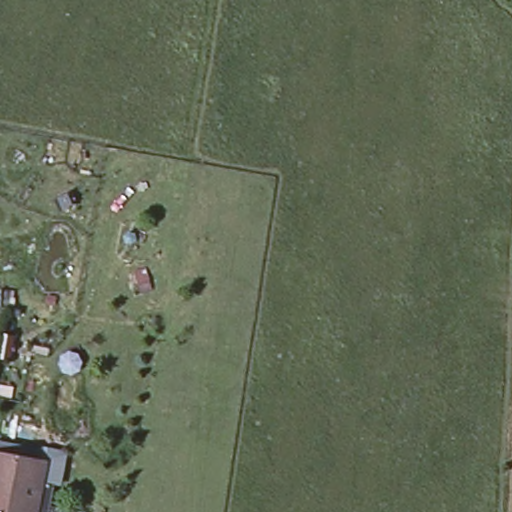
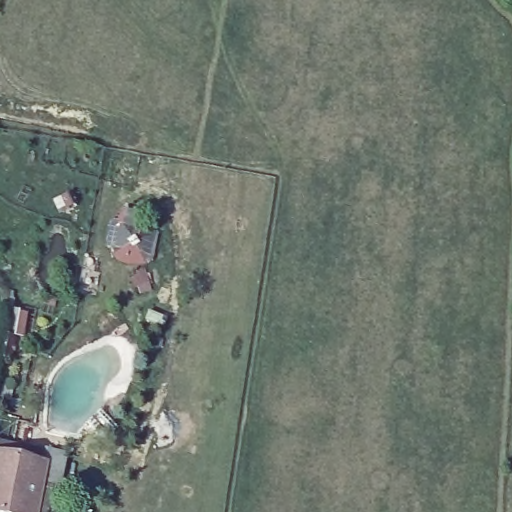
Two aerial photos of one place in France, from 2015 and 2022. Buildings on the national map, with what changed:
unchanged [(32,480),(37,480),(31,512),(0,512),(0,453),(37,460),(32,480)]

